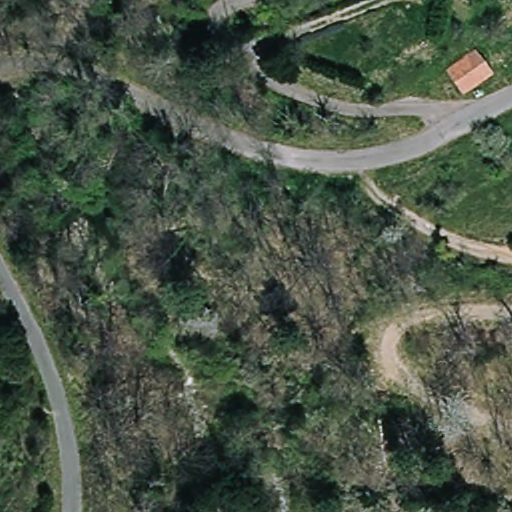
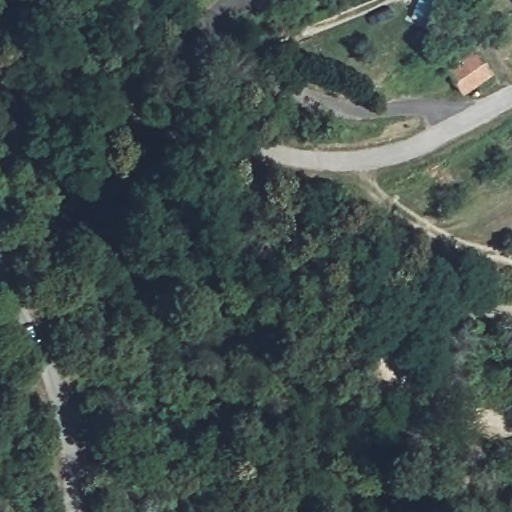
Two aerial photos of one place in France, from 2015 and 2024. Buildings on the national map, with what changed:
unchanged [(474,52),(487,72),(462,89),(446,70),(474,52)]

